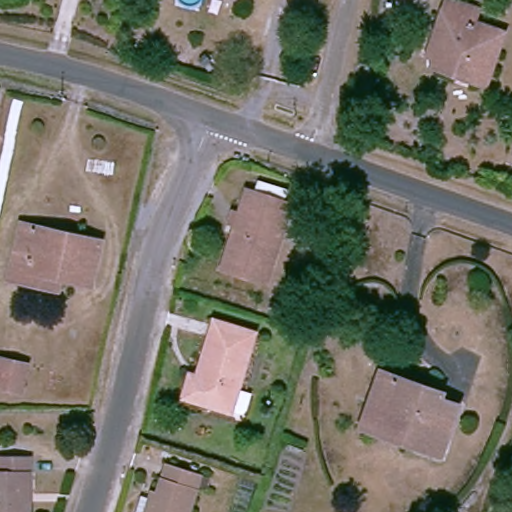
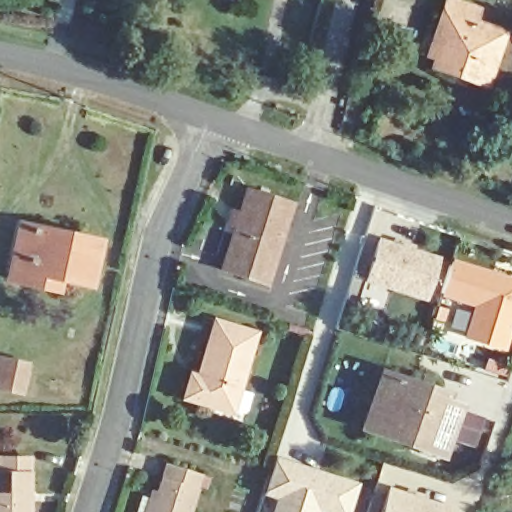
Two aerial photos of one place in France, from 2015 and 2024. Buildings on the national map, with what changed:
unchanged [(432,41),(434,37),(445,3),(476,14),(472,25),(501,35),(482,92),(478,90),(432,72),(423,69),(432,41)]
unchanged [(268,282),(222,269),(246,189),(292,202),(268,282)]
unchanged [(19,281),(24,266),(14,263),(23,221),(100,240),(91,282),(61,275),(57,290),(19,281)]
new [(376,237),(439,257),(424,300),(363,280),(376,237)]
new [(472,306),(440,296),(452,258),(512,277),(512,328),(506,349),(463,336),(472,306)]
unchanged [(234,410),(187,397),(193,375),(201,376),(217,323),(255,335),(234,410)]
unchanged [(18,394),(0,389),(0,361),(25,367),(18,394)]
unchanged [(373,398),(382,372),(437,393),(437,400),(455,407),(439,456),(413,447),(362,429),(373,398)]
new [(275,500),(262,496),(274,456),(357,482),(348,512),(271,512),(275,500)]
unchanged [(33,512),(0,512),(0,459),(4,459),(32,459),(33,512)]
unchanged [(140,495),(150,497),(158,498),(168,465),(201,475),(190,512),(137,512),(140,495)]
new [(387,486),(449,505),(447,512),(379,512),(387,486)]

